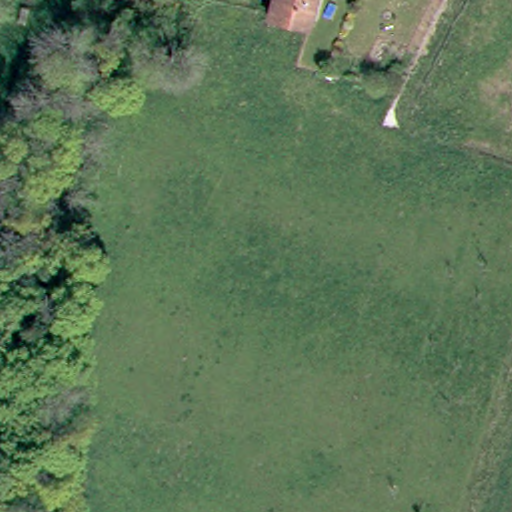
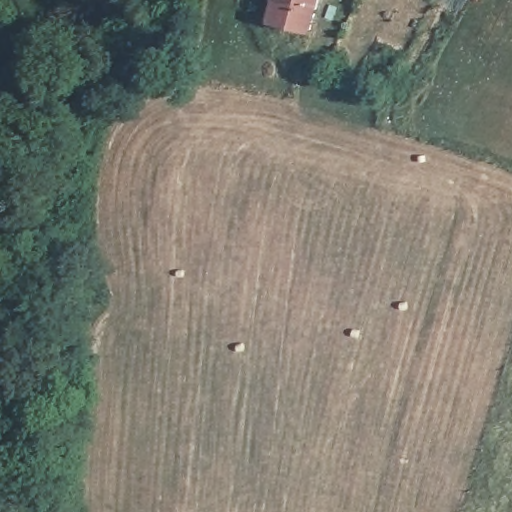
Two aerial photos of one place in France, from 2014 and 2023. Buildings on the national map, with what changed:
unchanged [(305,28),(264,15),(269,0),(314,0),(305,28)]

